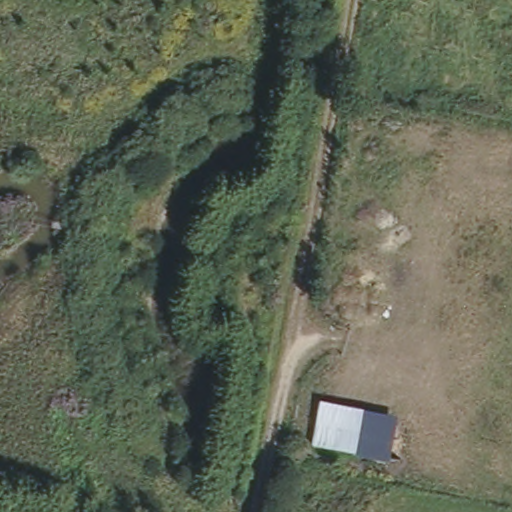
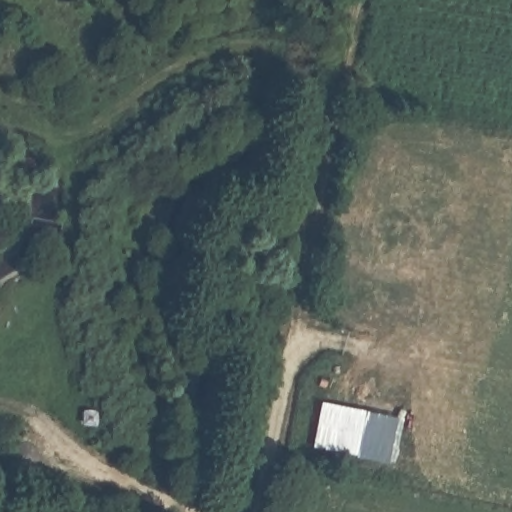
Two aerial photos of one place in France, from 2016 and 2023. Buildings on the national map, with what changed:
unchanged [(397,416),(390,460),(309,445),(317,402),(397,416)]

